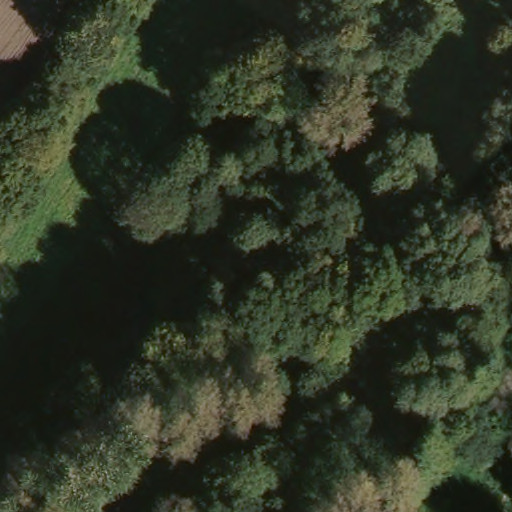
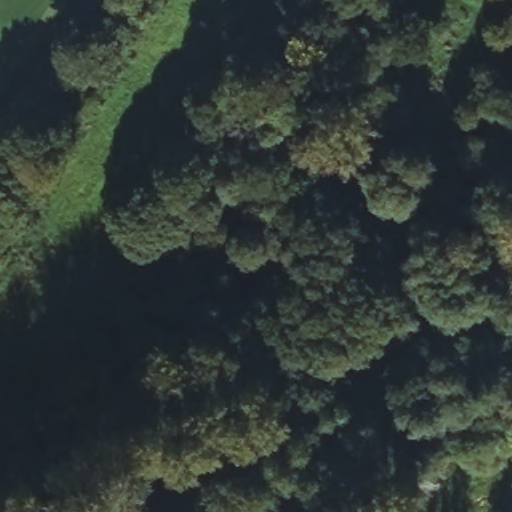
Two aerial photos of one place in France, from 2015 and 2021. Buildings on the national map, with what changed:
unchanged [(337,473),(313,439),(339,422),(364,456),(337,473)]

